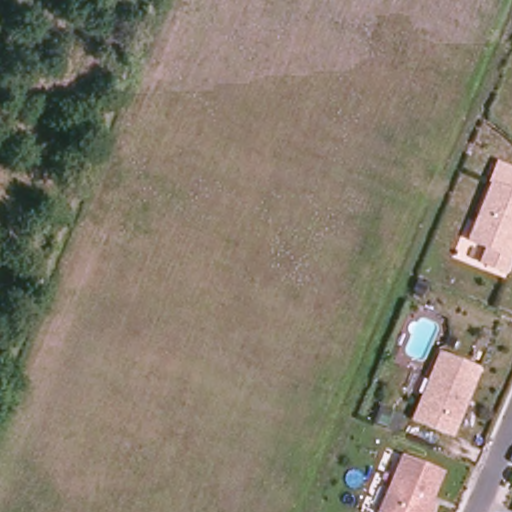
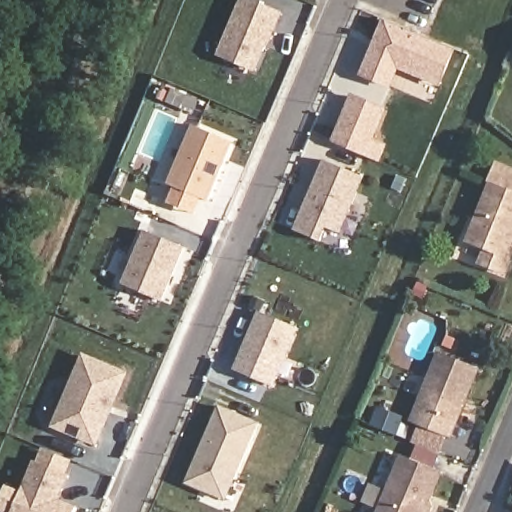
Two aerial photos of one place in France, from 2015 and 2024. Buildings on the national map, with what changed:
new [(253,0),(282,12),(275,30),(272,29),(255,69),(220,54),(243,0),(253,0)]
new [(382,19),(458,50),(442,88),(400,71),(392,90),(359,76),(382,19)]
new [(387,108),(368,157),(331,141),(350,93),(387,108)]
new [(196,125),(234,142),(209,201),(170,185),(196,125)]
new [(328,161),(367,177),(343,233),(330,227),(324,242),(299,231),(328,161)]
unchanged [(503,272),(477,262),(483,247),(466,241),(489,183),(512,192),(512,228),(512,247),(509,255),(503,272)]
new [(148,231),(186,247),(163,301),(125,285),(148,231)]
new [(263,312),(300,327),(276,386),(238,371),(263,312)]
unchanged [(414,420),(441,352),(479,367),(453,435),(414,420)]
new [(85,355),(127,372),(97,442),(56,426),(85,355)]
new [(222,407),(261,424),(229,500),(190,483),(222,407)]
unchanged [(404,455),(444,471),(432,500),(435,506),(432,512),(380,512),(404,455)]
new [(37,462),(71,475),(60,500),(79,508),(77,512),(16,512),(37,462)]

